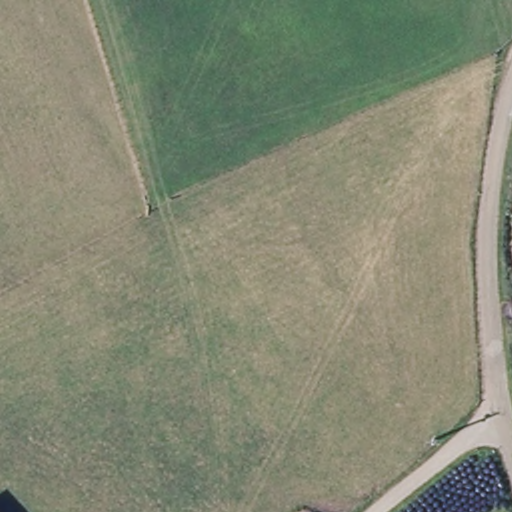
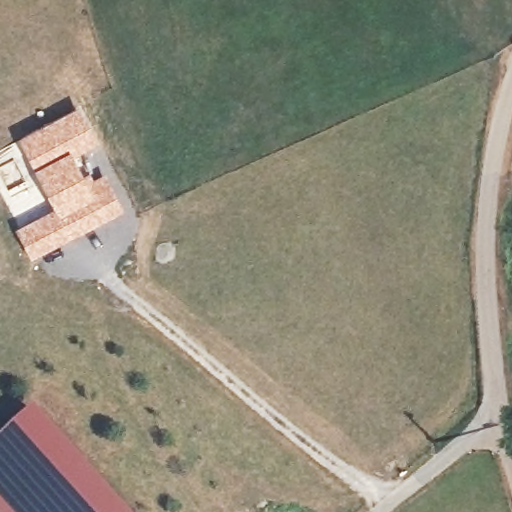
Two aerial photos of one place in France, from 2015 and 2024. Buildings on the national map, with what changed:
new [(54,206),(18,136),(78,104),(98,140),(73,152),(86,178),(103,170),(124,208),(31,257),(14,229),(54,206)]
new [(0,512),(0,437),(31,409),(127,512),(0,512)]

